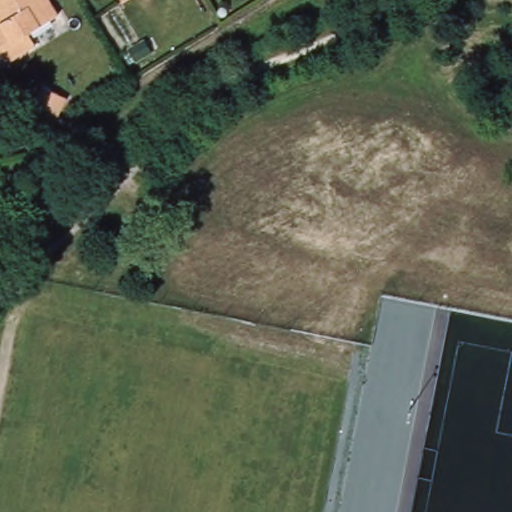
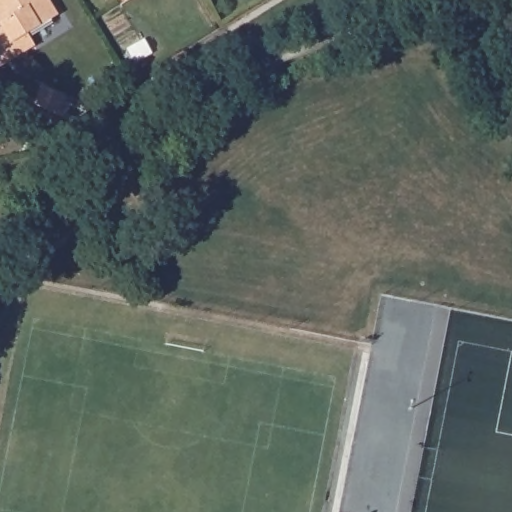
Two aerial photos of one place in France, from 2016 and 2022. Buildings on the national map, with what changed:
unchanged [(36,44),(20,53),(0,22),(0,21),(0,0),(52,0),(60,13),(29,31),(36,44)]
unchanged [(0,65),(0,22),(20,53),(0,65)]
unchanged [(67,121),(38,108),(50,84),(75,96),(67,121)]
unchanged [(0,235),(0,232),(1,233),(0,235)]

